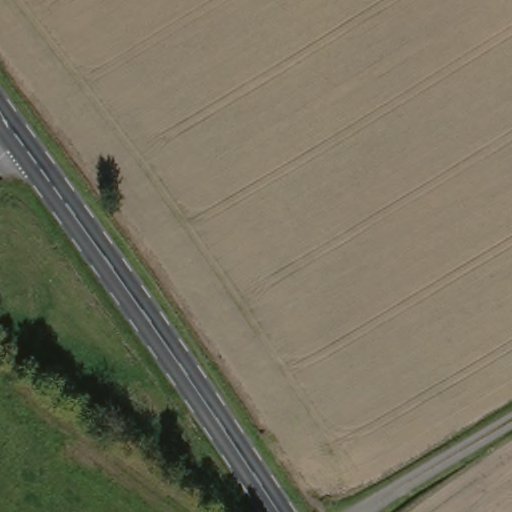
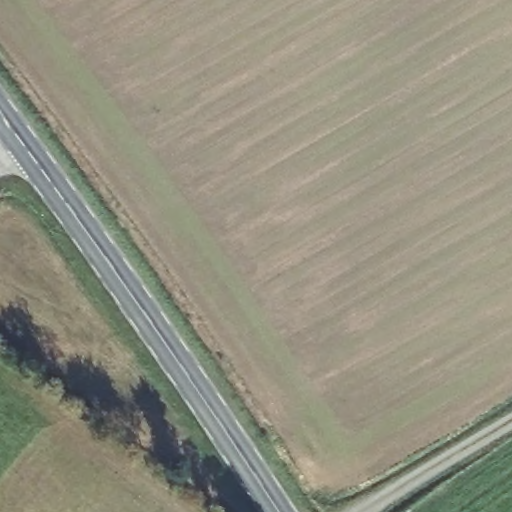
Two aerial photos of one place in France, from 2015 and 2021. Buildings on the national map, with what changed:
[]

